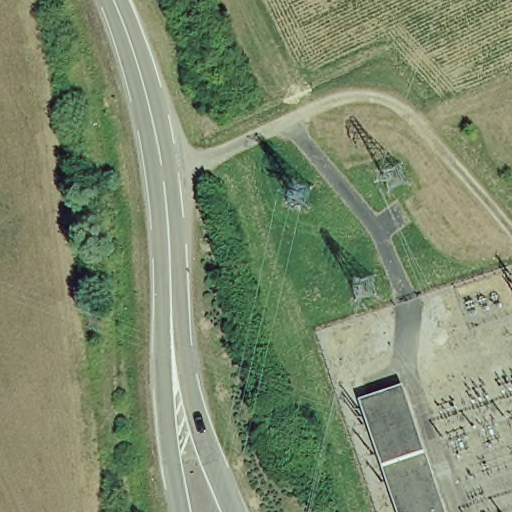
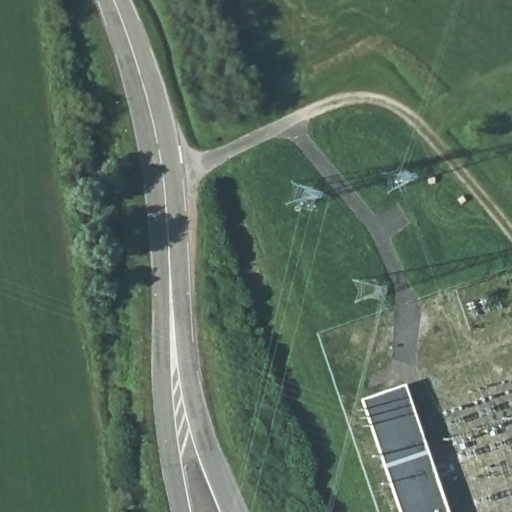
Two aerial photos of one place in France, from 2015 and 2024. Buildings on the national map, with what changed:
unchanged [(442,512),(396,512),(360,400),(400,386),(442,512)]

